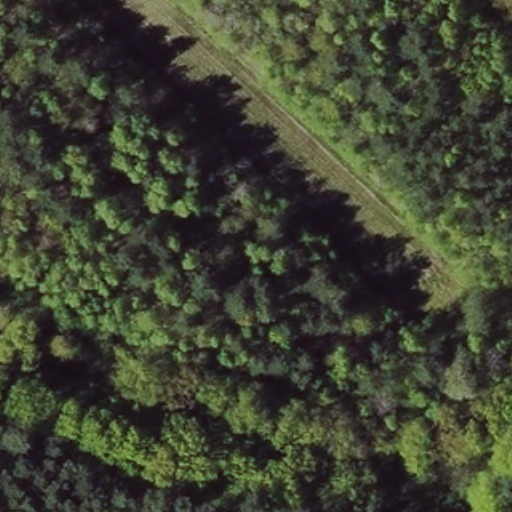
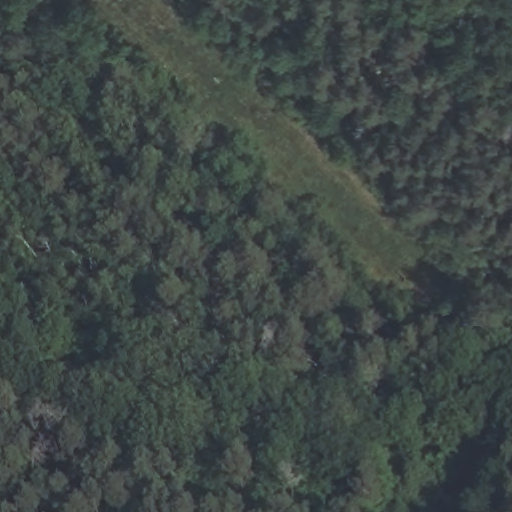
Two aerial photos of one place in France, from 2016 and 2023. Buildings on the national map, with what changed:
[]

